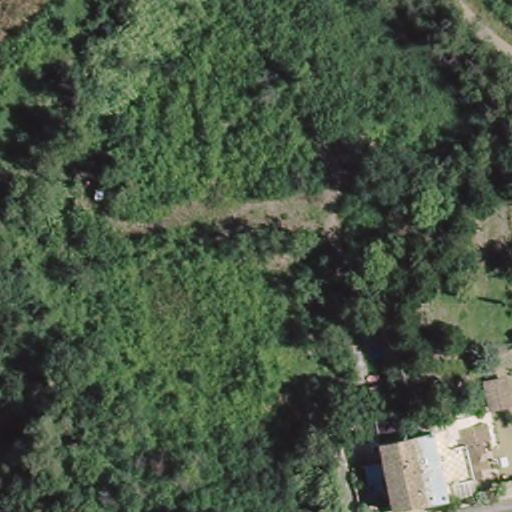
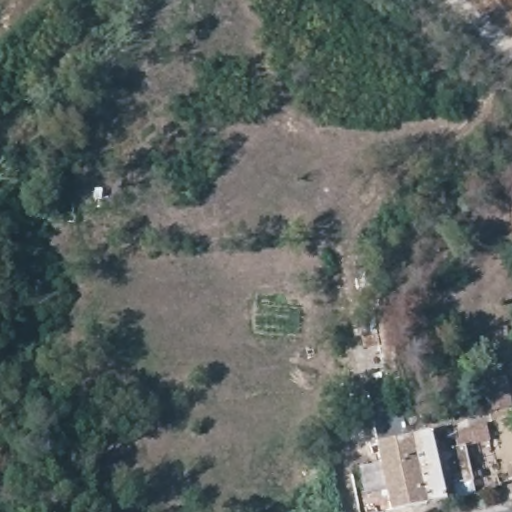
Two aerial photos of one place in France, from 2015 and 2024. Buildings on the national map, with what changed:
unchanged [(429,507),(414,437),(437,432),(452,502),(429,507)]
unchanged [(398,512),(384,444),(414,437),(429,507),(406,512),(398,512)]

